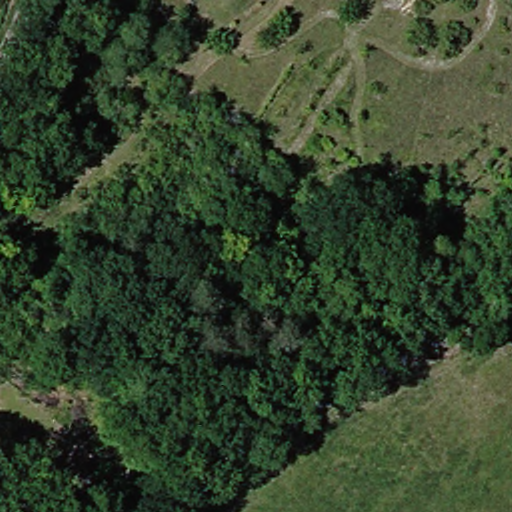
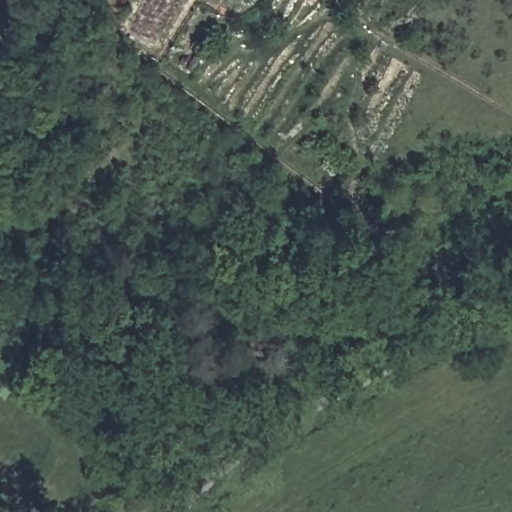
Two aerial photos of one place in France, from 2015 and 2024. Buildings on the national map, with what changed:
[]

